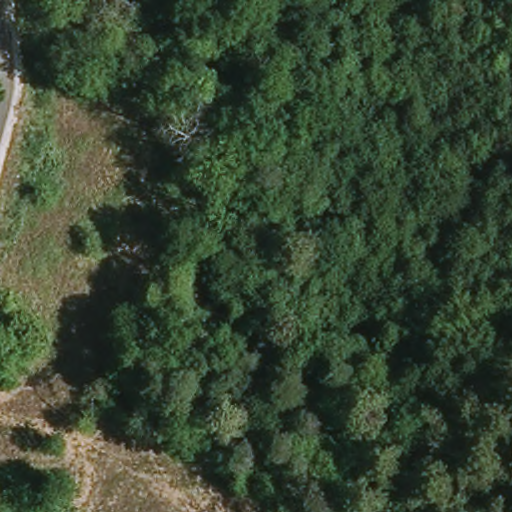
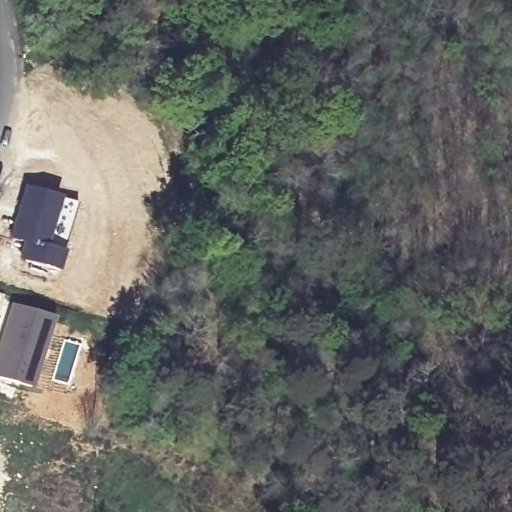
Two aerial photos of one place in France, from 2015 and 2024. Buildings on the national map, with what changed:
new [(6,238),(22,185),(76,201),(63,250),(57,272),(16,260),(21,242),(6,238)]
new [(10,302),(55,315),(33,388),(0,378),(0,336),(10,302)]

